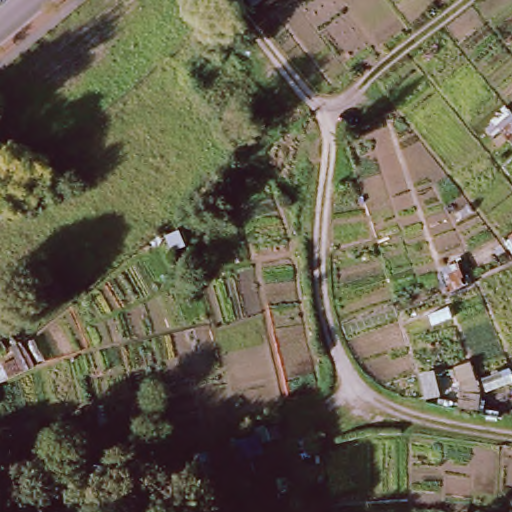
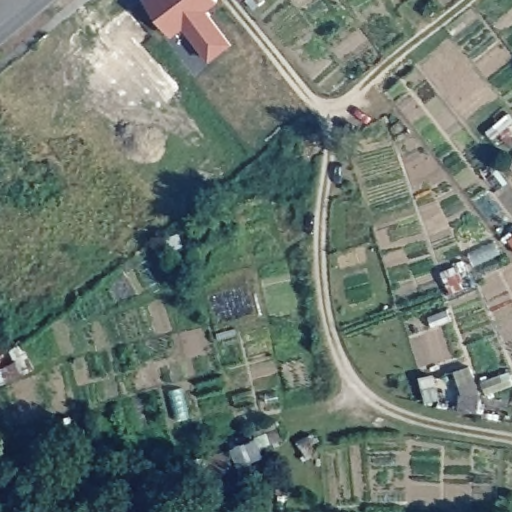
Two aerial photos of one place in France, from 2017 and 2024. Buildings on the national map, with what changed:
new [(218,0),(207,10),(233,43),(210,61),(183,28),(172,36),(143,0),(218,0)]

